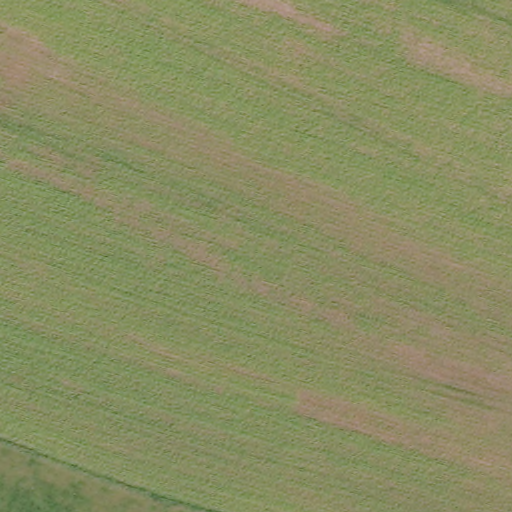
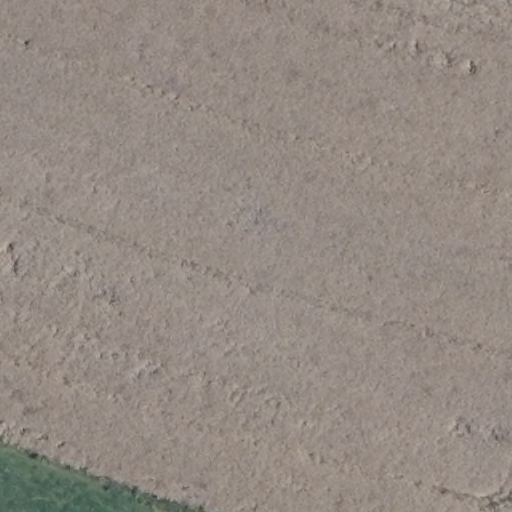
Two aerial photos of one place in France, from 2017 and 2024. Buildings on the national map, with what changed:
[]

